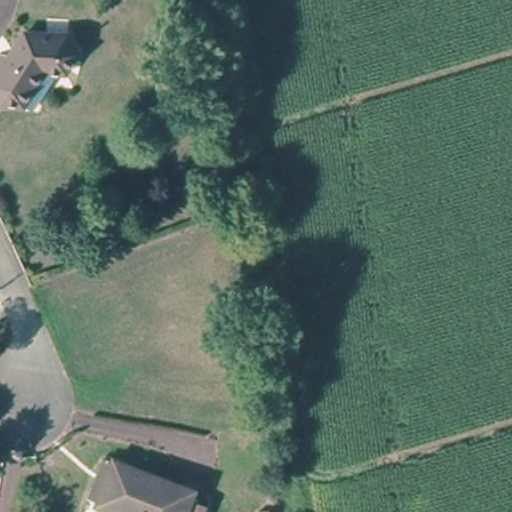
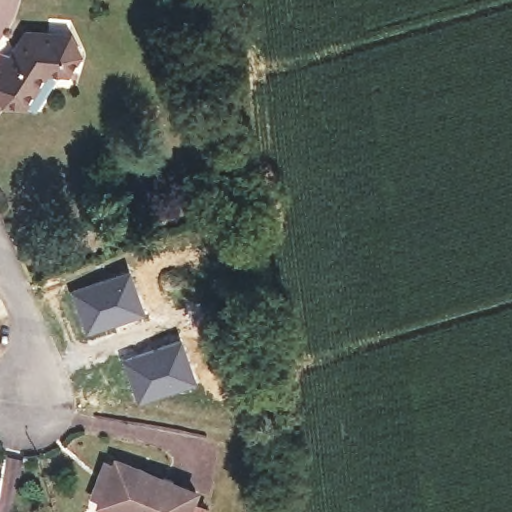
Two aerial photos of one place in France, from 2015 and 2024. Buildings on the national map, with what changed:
unchanged [(11,59),(27,34),(72,32),(85,53),(71,74),(52,73),(30,109),(0,111),(0,110),(0,60),(11,59)]
new [(129,268),(145,309),(85,332),(69,290),(129,268)]
new [(181,337),(197,380),(136,401),(120,358),(181,337)]
unchanged [(200,490),(191,512),(126,512),(102,502),(104,500),(91,496),(92,494),(107,460),(116,463),(120,456),(200,490)]

